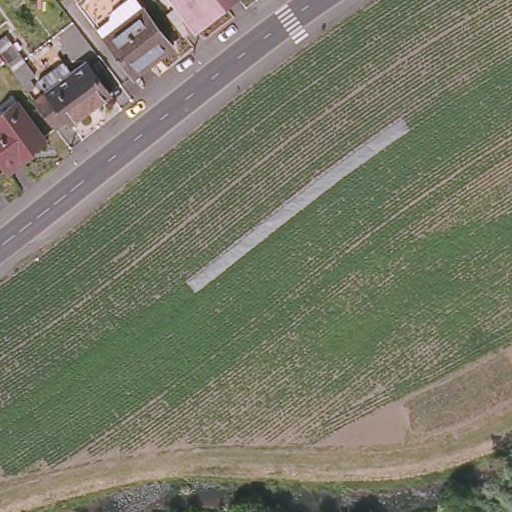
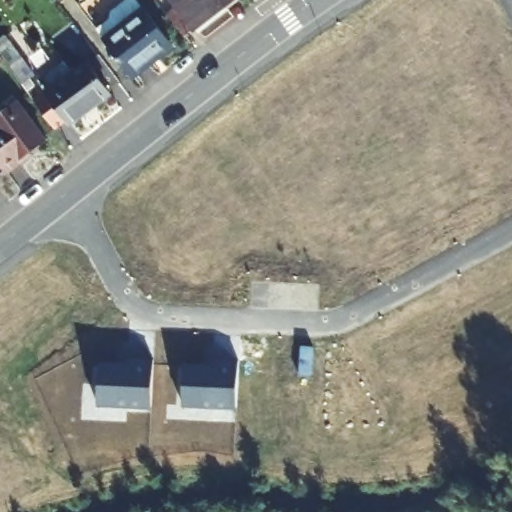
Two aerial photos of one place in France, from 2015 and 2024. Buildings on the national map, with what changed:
unchanged [(131,81),(103,42),(142,13),(134,1),(135,0),(150,0),(165,19),(176,11),(169,1),(170,0),(211,0),(221,12),(183,42),(170,51),(169,54),(131,81)]
unchanged [(221,12),(211,0),(235,0),(221,12)]
new [(0,65),(0,39),(7,34),(32,69),(18,79),(5,61),(0,65)]
unchanged [(107,91),(69,120),(63,116),(52,126),(32,98),(83,59),(107,91)]
unchanged [(45,138),(7,170),(0,160),(0,127),(0,111),(17,98),(45,138)]
new [(186,361),(219,364),(220,355),(241,356),(237,406),(184,405),(186,361)]
new [(150,409),(99,406),(100,360),(130,362),(129,356),(155,356),(150,409)]

